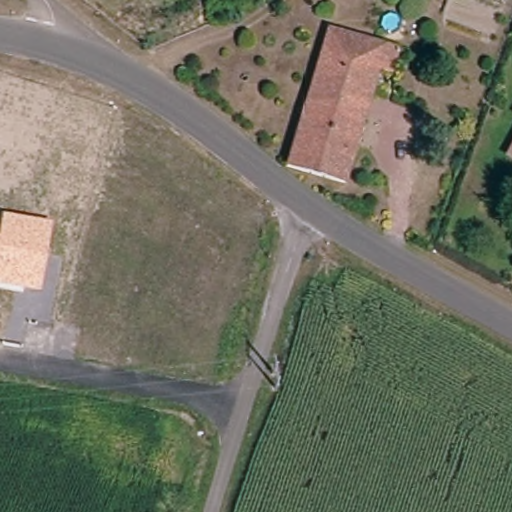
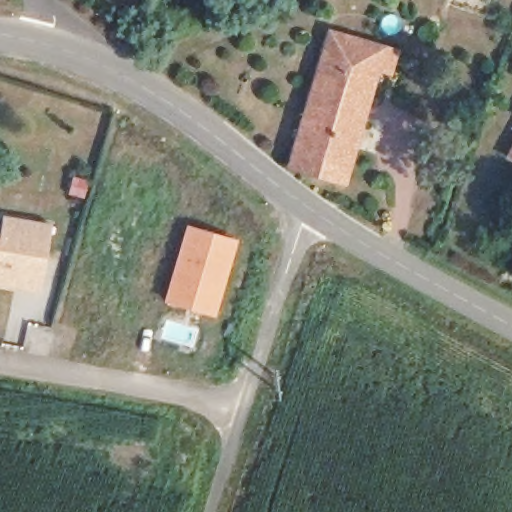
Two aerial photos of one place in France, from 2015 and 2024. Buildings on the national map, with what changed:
unchanged [(286,166),(329,37),(382,55),(400,60),(391,93),(374,89),(346,183),(286,166)]
demolished [(40,86),(25,81),(30,65),(44,70),(40,86)]
unchanged [(508,158),(512,152),(512,160),(508,158)]
unchanged [(53,221),(42,292),(0,285),(0,228),(2,213),(53,221)]
new [(239,239),(216,316),(164,303),(186,225),(239,239)]

